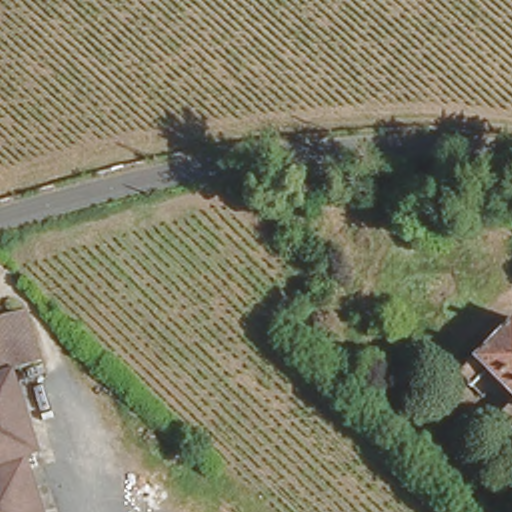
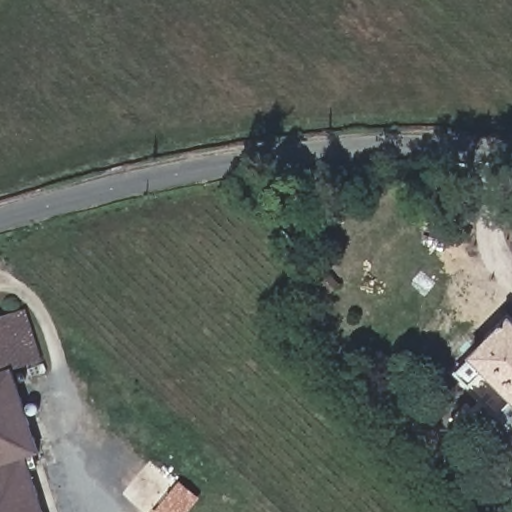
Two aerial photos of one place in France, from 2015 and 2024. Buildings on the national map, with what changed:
unchanged [(332,279),(325,287),(316,279),(324,271),(332,279)]
unchanged [(24,310),(42,361),(14,371),(41,452),(36,454),(38,461),(29,464),(44,512),(0,512),(0,318),(24,310)]
unchanged [(512,317),(512,418),(461,369),(512,317)]
new [(154,512),(180,480),(201,497),(189,512),(154,512)]

